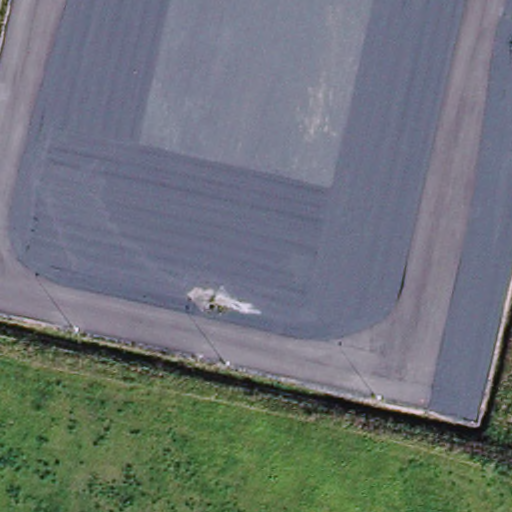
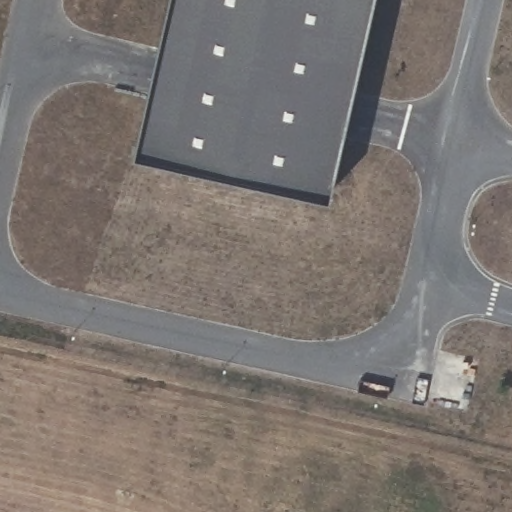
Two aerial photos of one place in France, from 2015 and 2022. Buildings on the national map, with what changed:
new [(332,192),(138,144),(170,0),(375,0),(332,192)]

